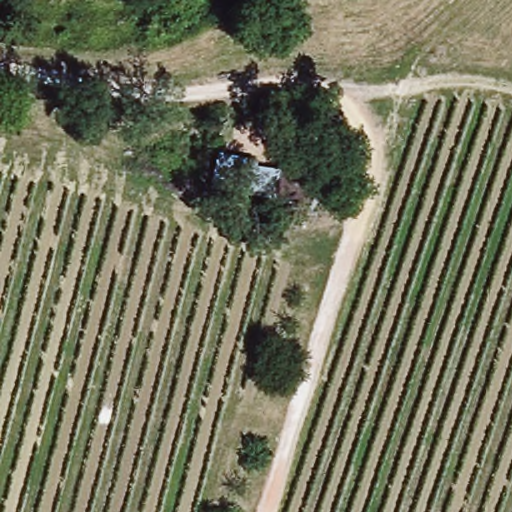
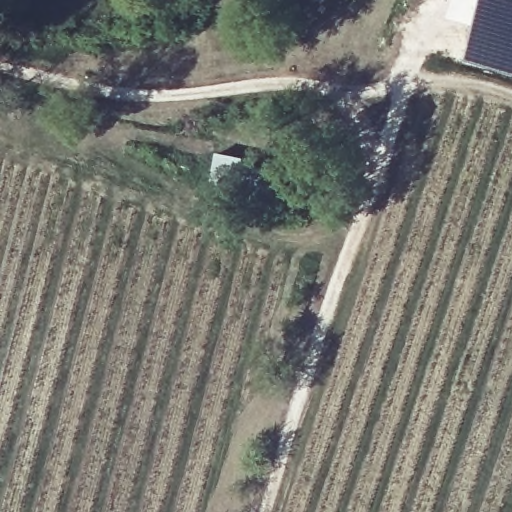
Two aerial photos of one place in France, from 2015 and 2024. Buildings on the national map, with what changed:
new [(512,0),(512,74),(465,60),(482,0),(512,0)]

